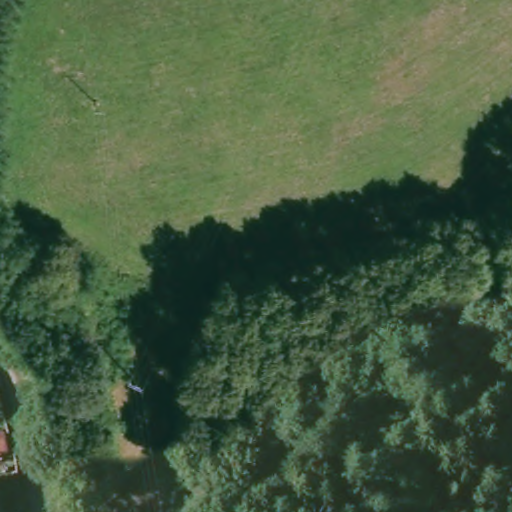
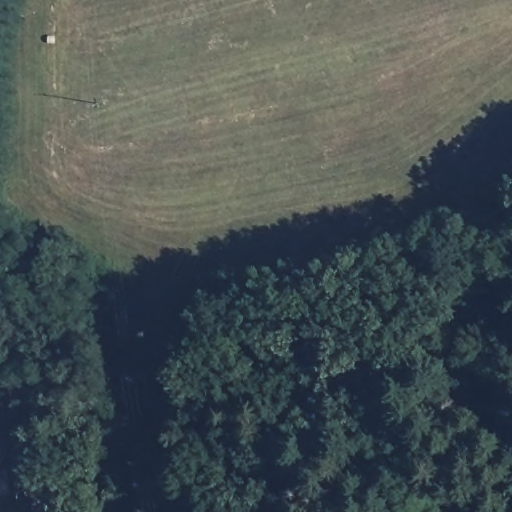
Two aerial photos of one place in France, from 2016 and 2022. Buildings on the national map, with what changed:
unchanged [(8,457),(0,457),(0,436),(4,436),(8,457)]

